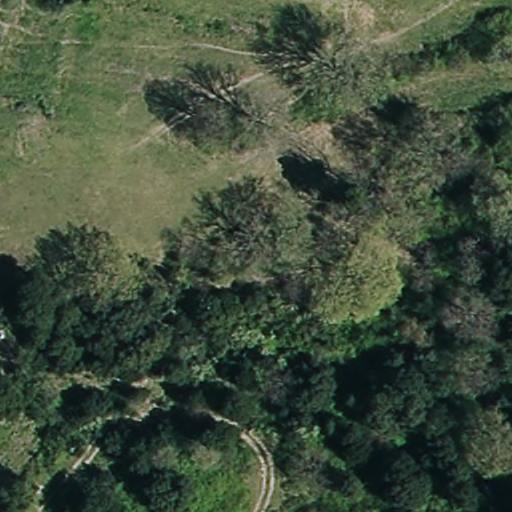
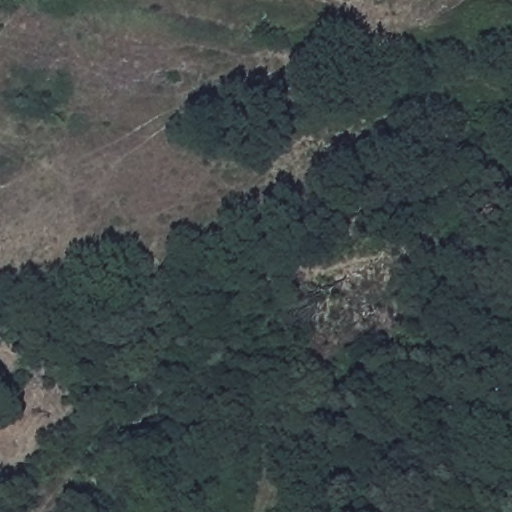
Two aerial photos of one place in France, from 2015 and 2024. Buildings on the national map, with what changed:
[]

